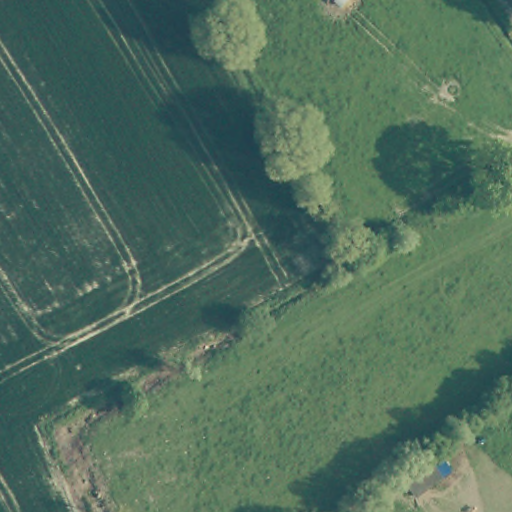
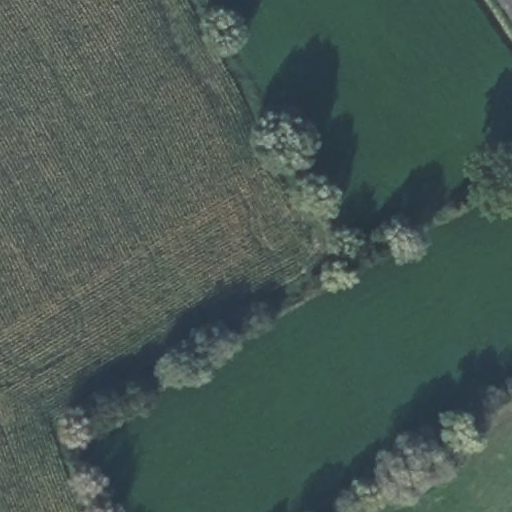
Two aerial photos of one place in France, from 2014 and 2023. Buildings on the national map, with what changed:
unchanged [(404,485),(432,462),(443,477),(417,500),(404,485)]

